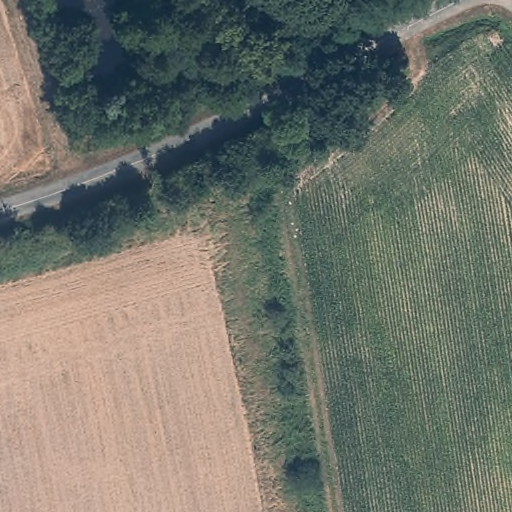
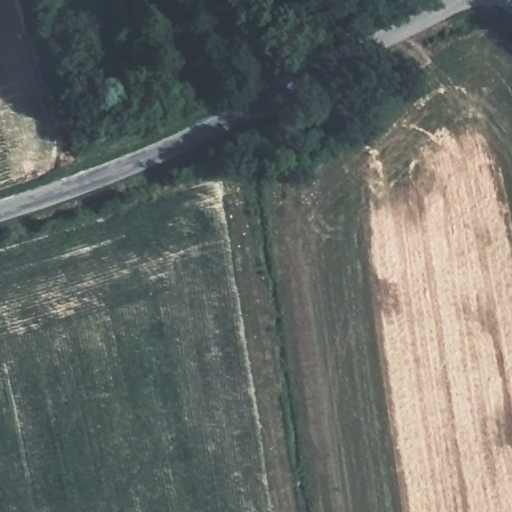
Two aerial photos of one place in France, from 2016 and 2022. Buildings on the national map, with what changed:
[]

